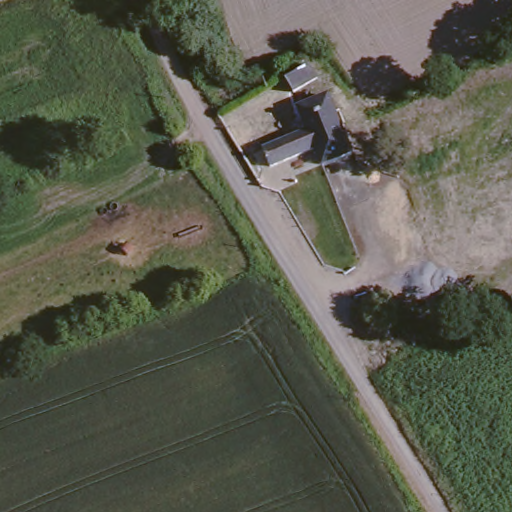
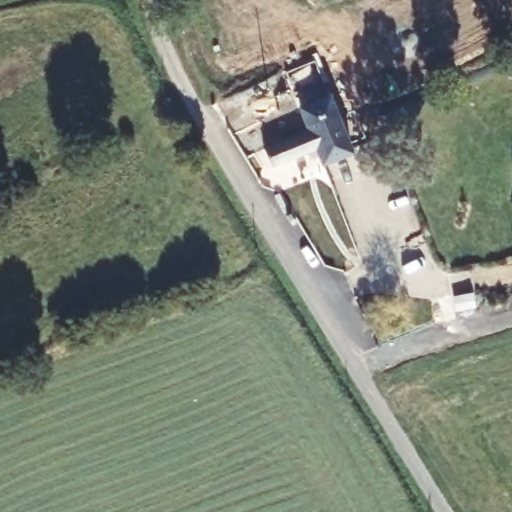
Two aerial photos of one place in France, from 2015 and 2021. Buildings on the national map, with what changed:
unchanged [(329,78),(305,91),(296,76),(321,62),(329,78)]
unchanged [(355,142),(325,155),(320,143),(277,162),(268,141),(311,122),(302,102),(332,88),(355,142)]

